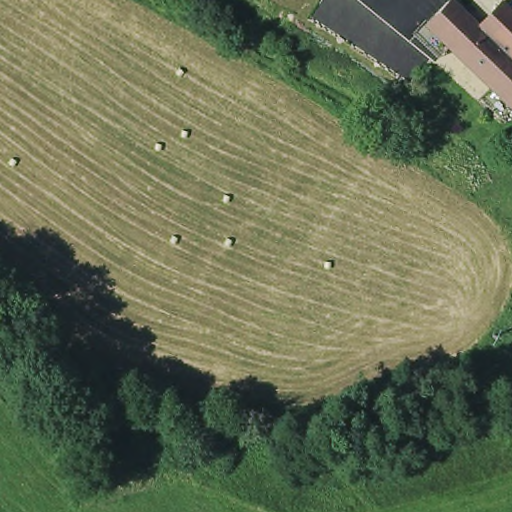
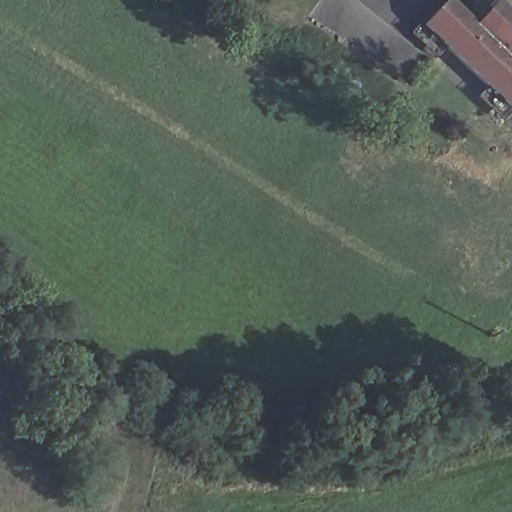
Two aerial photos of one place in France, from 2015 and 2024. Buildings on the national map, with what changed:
unchanged [(485,106),(483,108),(415,40),(453,0),(464,0),(485,21),(505,0),(510,0),(512,2),(512,105),(490,102),(485,106)]

